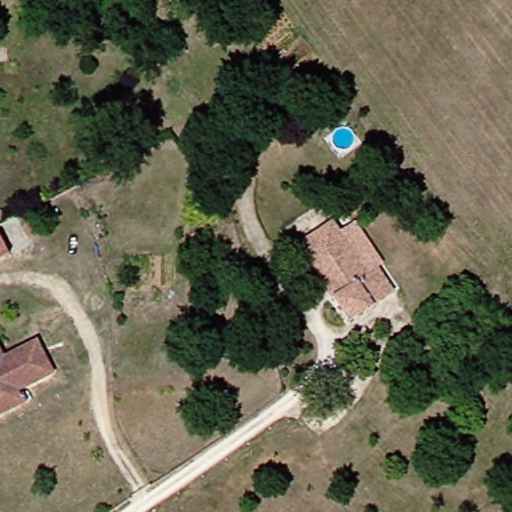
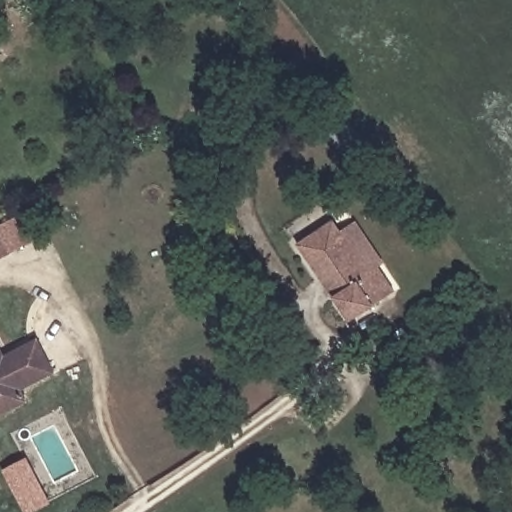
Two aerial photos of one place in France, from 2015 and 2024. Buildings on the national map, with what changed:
unchanged [(304,244),(337,222),(373,275),(383,268),(398,291),(377,304),(378,305),(354,321),(339,298),(315,262),(304,244)]
unchanged [(2,249),(0,250),(0,247),(2,249)]
unchanged [(30,388),(37,399),(4,417),(0,411),(0,390),(2,388),(0,385),(0,334),(12,355),(30,346),(45,337),(57,359),(63,370),(30,388)]
new [(28,512),(20,495),(7,472),(26,462),(39,485),(48,503),(30,512),(28,512)]

